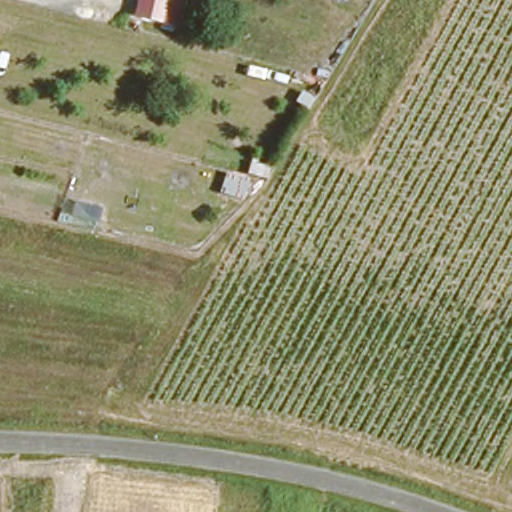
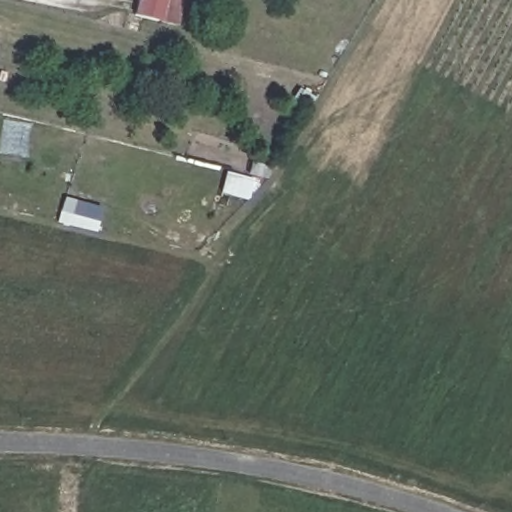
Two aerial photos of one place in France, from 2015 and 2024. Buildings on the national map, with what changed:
unchanged [(138,11),(140,0),(169,0),(165,17),(138,11)]

